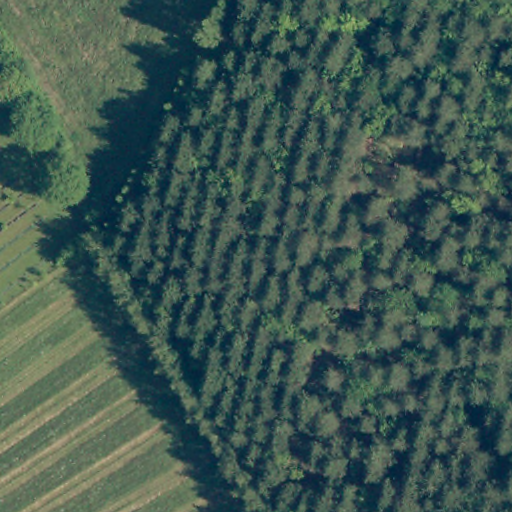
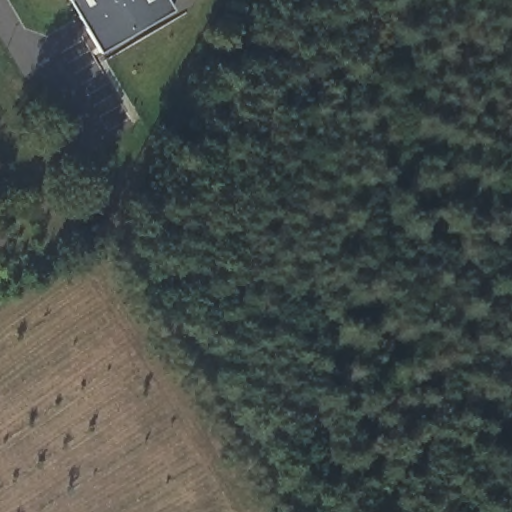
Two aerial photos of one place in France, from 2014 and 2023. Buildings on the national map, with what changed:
new [(173,9),(101,51),(71,0),(168,0),(173,9)]

